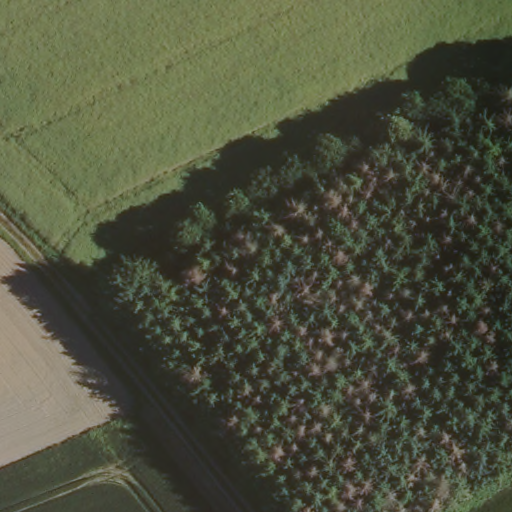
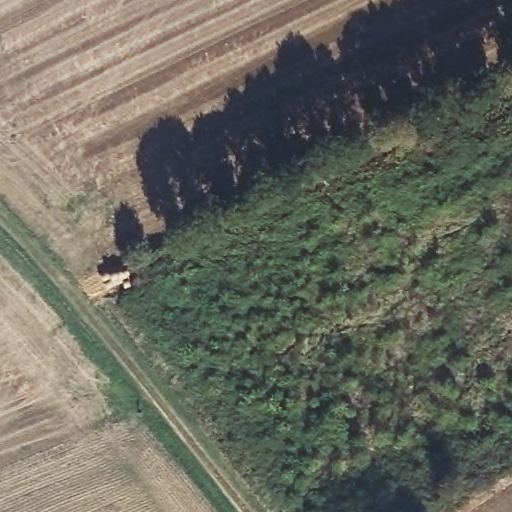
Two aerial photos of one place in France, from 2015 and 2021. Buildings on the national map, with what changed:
[]

